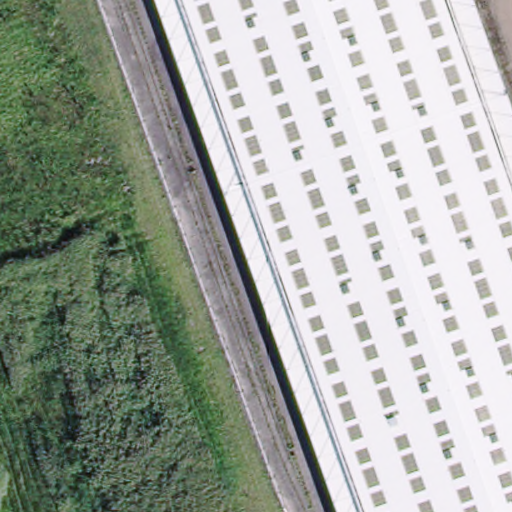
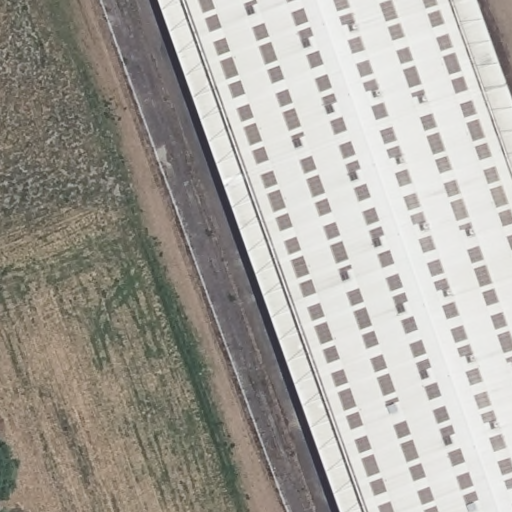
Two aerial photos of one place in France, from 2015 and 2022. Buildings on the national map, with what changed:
unchanged [(512,145),(512,512),(372,512),(190,0),(460,0),(512,145)]

